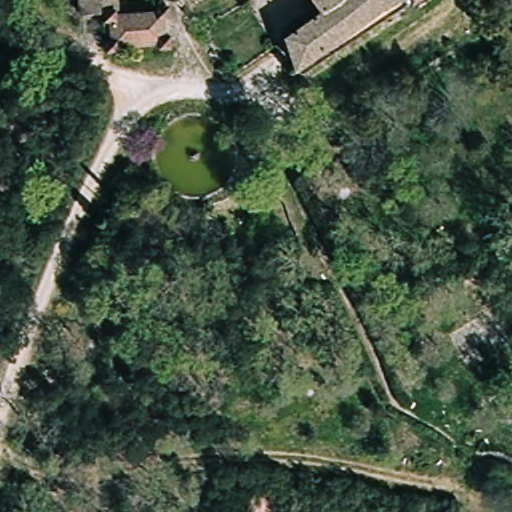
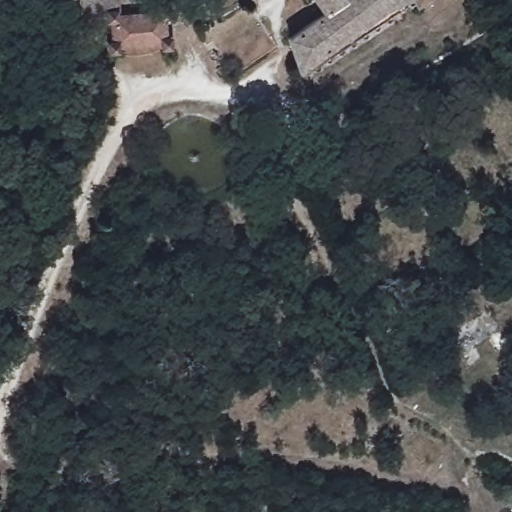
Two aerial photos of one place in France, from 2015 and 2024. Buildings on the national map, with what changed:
unchanged [(105,9),(105,12),(78,10),(78,0),(113,0),(113,8),(105,9)]
unchanged [(290,38),(325,14),(322,7),(313,12),(306,0),(418,0),(303,82),(290,38)]
unchanged [(115,15),(158,14),(158,8),(169,7),(169,19),(165,20),(165,37),(170,37),(170,50),(159,51),(159,43),(115,44),(115,50),(105,50),(106,37),(111,37),(111,20),(105,20),(105,12),(105,9),(113,8),(115,15)]

